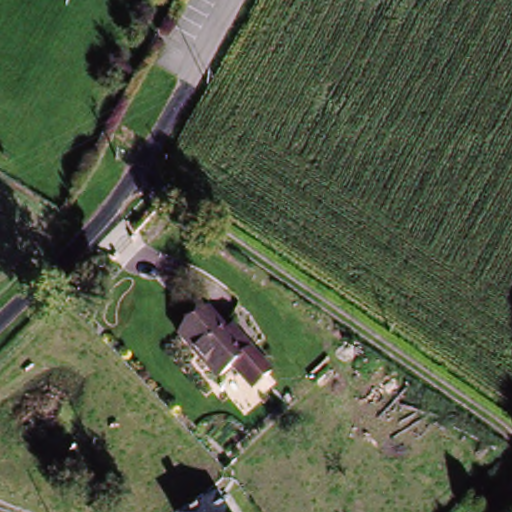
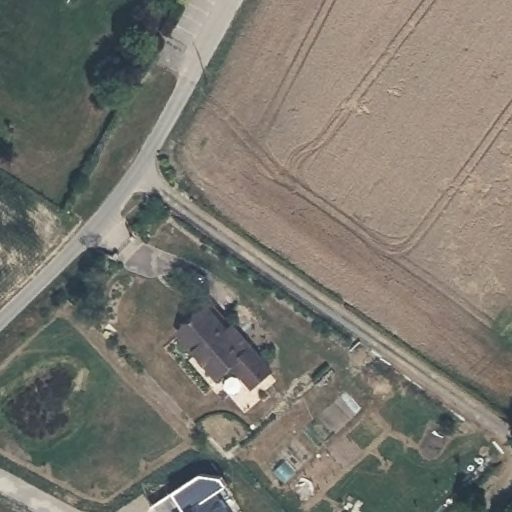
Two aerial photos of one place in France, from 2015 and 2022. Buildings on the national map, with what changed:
unchanged [(260,386),(235,367),(223,382),(176,346),(204,308),(229,327),(232,323),(246,333),(280,360),(260,386)]
unchanged [(223,512),(197,512),(215,500),(223,512)]

